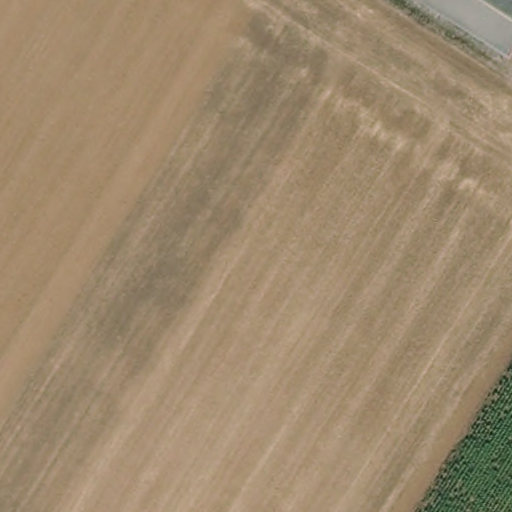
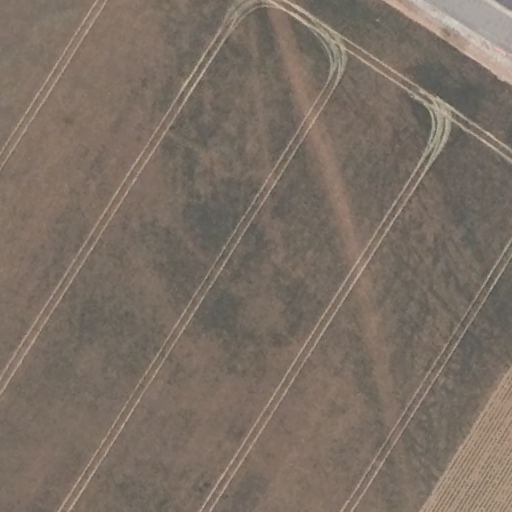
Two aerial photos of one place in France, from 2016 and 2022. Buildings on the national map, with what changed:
unchanged [(424,0),(512,0),(512,50),(510,53),(424,0)]

